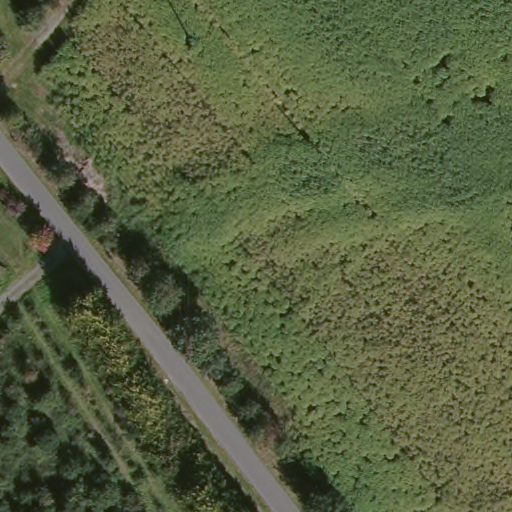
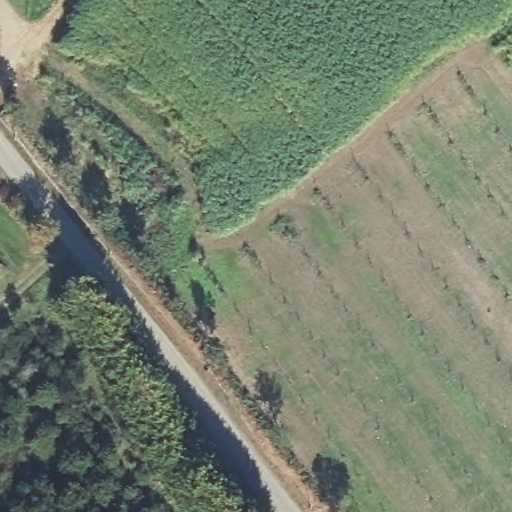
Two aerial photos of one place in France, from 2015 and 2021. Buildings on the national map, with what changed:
[]

